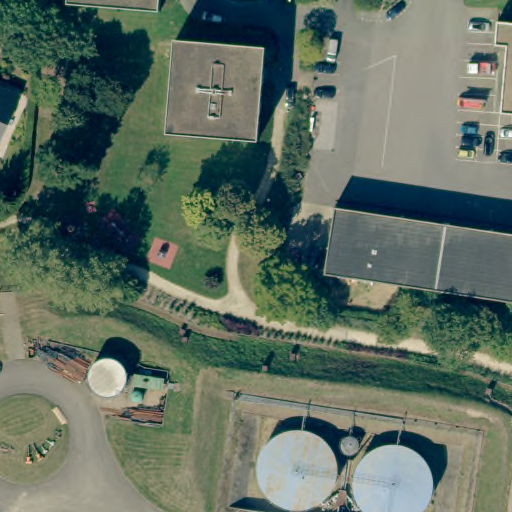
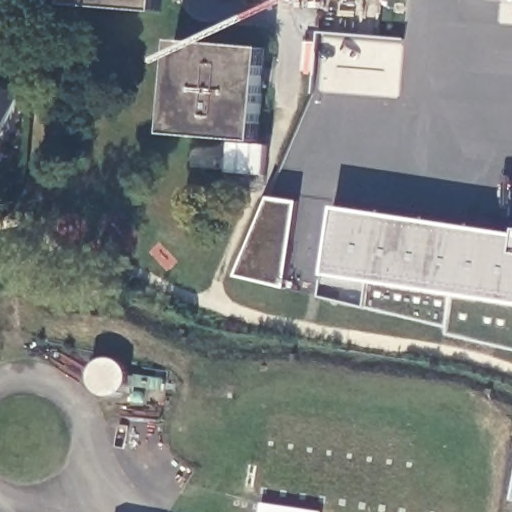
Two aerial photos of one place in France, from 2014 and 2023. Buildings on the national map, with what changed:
unchanged [(161,0),(161,3),(124,0),(161,0)]
demolished [(508,40),(511,16),(512,16),(512,97),(503,96),(508,40)]
unchanged [(167,124),(175,31),(267,39),(259,131),(167,124)]
unchanged [(16,94),(0,128),(0,87),(16,94)]
new [(269,199),(297,203),(285,285),(237,275),(269,199)]
unchanged [(338,203),(512,229),(512,298),(326,270),(338,203)]
new [(512,298),(512,349),(448,334),(448,327),(367,307),(366,307),(321,297),(326,270),(512,298)]
unchanged [(132,373),(132,371),(162,376),(161,383),(160,388),(130,383),(130,382),(124,382),(126,372),(132,373)]
unchanged [(129,396),(128,394),(128,393),(129,392),(129,390),(130,389),(131,388),(132,388),(134,387),(135,387),(136,388),(137,389),(139,389),(140,391),(140,393),(140,394),(140,396),(139,398),(137,399),(136,399),(135,399),(133,399),(132,399),(131,398),(130,397),(129,396)]
demolished [(341,444),(342,441),(346,439),(348,439),(351,439),(353,441),(355,443),(356,445),(356,449),(356,452),(353,454),(352,455),(348,457),(345,456),(342,454),(341,452),(340,449),(340,446),(341,444)]

